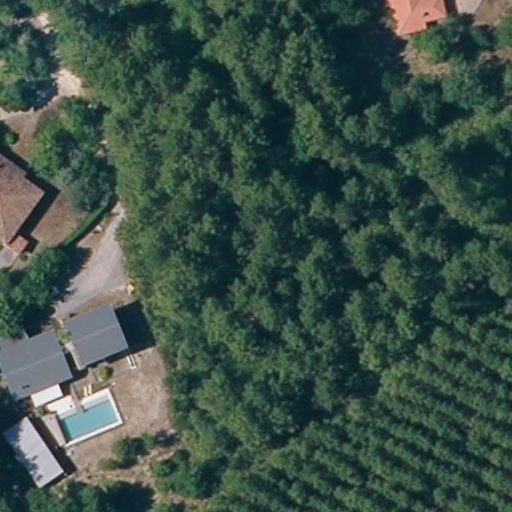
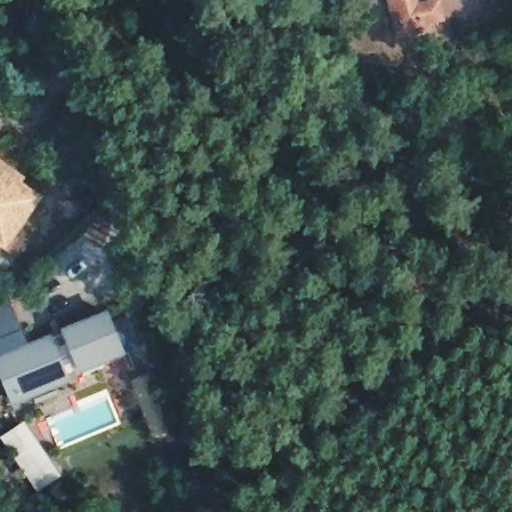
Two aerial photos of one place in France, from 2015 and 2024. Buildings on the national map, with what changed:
unchanged [(415,23),(416,27),(391,32),(385,0),(409,0),(410,4),(427,0),(432,0),(437,18),(415,23)]
unchanged [(0,248),(0,175),(35,200),(0,248)]
unchanged [(22,404),(0,351),(0,347),(28,336),(34,350),(113,317),(127,352),(105,361),(107,365),(87,373),(72,379),(73,383),(22,404)]
unchanged [(3,439),(28,422),(65,477),(39,493),(3,439)]

